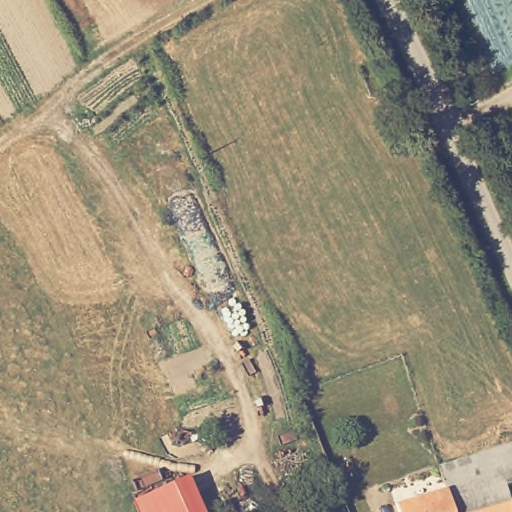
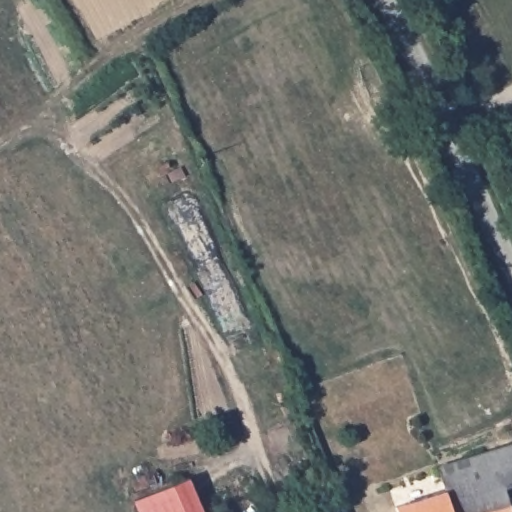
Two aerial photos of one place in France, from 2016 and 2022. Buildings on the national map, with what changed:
unchanged [(446,492),(439,469),(512,446),(512,487),(505,489),(511,512),(396,512),(395,509),(446,492)]
unchanged [(190,480),(203,512),(136,512),(132,502),(190,480)]

